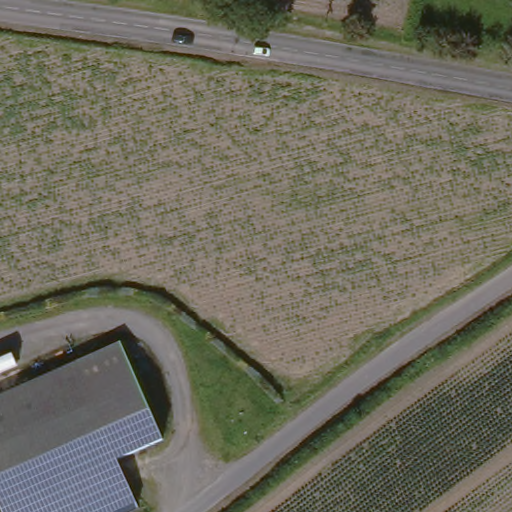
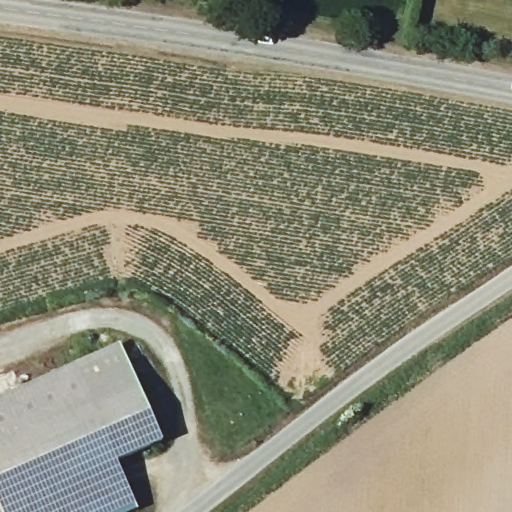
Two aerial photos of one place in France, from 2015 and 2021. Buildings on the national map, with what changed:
unchanged [(88,412),(69,370),(119,350),(161,446),(113,467),(111,465),(88,412)]
unchanged [(0,400),(69,370),(88,412),(0,450),(0,400)]
unchanged [(111,465),(2,512),(0,512),(0,450),(88,412),(111,465)]
unchanged [(2,512),(111,465),(113,467),(133,512),(2,512)]

